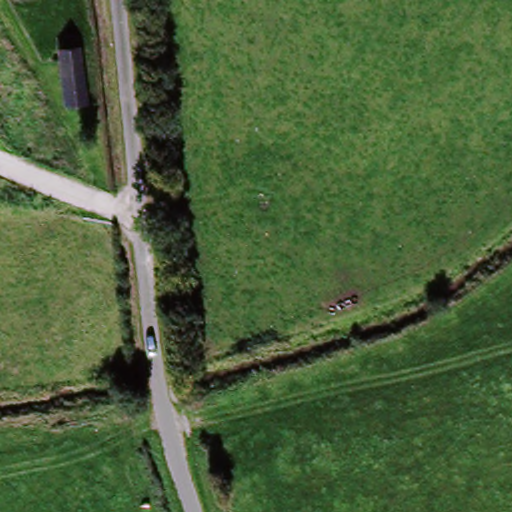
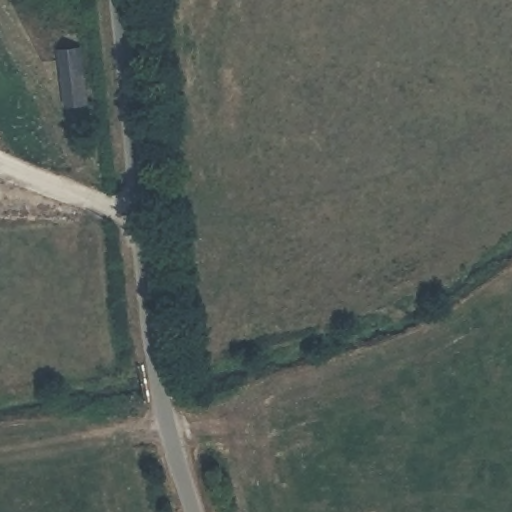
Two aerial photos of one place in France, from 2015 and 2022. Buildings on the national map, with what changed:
unchanged [(65,120),(53,53),(74,50),(83,115),(65,120)]

